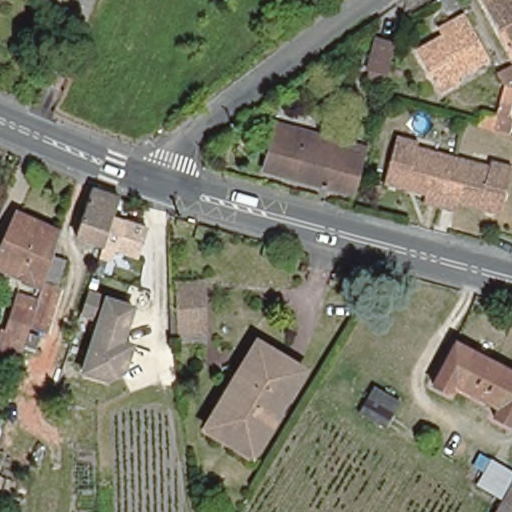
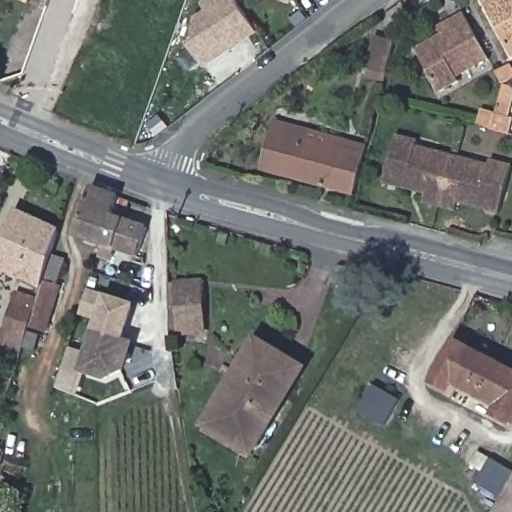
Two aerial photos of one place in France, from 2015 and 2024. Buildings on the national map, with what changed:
unchanged [(28,0),(58,0),(54,10),(28,0)]
new [(189,35),(193,18),(202,11),(198,5),(204,0),(233,0),(254,31),(199,66),(184,44),(191,38),(189,35)]
new [(277,0),(298,0),(285,3),(277,0)]
unchanged [(482,0),(512,0),(512,55),(510,56),(482,0)]
unchanged [(460,81),(439,92),(416,49),(443,34),(438,26),(465,12),(490,59),(478,64),(473,67),(457,76),(460,81)]
unchanged [(392,62),(388,76),(370,71),(378,44),(396,48),(392,62)]
unchanged [(512,80),(503,84),(496,70),(512,65),(512,80)]
unchanged [(478,125),(482,110),(495,113),(500,98),(510,100),(505,115),(511,117),(507,132),(491,129),(478,125)]
unchanged [(295,177),(264,169),(276,121),(306,129),(295,177)]
unchanged [(368,145),(355,194),(295,177),(306,129),(368,145)]
unchanged [(384,182),(397,135),(419,140),(417,146),(434,150),(452,155),(448,172),(448,173),(438,205),(421,201),(423,192),(406,188),(384,182)]
unchanged [(438,205),(448,173),(448,172),(452,155),(471,160),(490,165),(491,160),(512,165),(512,169),(500,213),(478,207),(458,201),(456,210),(438,205)]
unchanged [(117,217),(108,245),(80,236),(96,189),(114,195),(124,198),(117,217)]
unchanged [(6,331),(10,331),(19,305),(39,311),(46,286),(0,267),(0,258),(20,213),(64,232),(47,284),(63,289),(50,327),(41,325),(40,329),(34,327),(32,332),(42,336),(36,351),(26,348),(24,357),(22,363),(0,356),(0,350),(6,331)]
unchanged [(150,229),(141,256),(108,245),(117,217),(150,229)]
unchanged [(200,282),(203,333),(177,333),(174,283),(200,282)]
unchanged [(124,341),(135,345),(126,368),(111,378),(87,370),(105,317),(86,311),(92,291),(136,307),(124,341)]
unchanged [(301,368),(249,454),(203,425),(255,339),(301,368)]
unchanged [(512,418),(508,425),(491,416),(495,407),(453,385),(448,393),(431,383),(453,342),(512,374),(512,418)]
unchanged [(403,400),(387,426),(361,412),(376,386),(403,400)]
unchanged [(512,512),(492,512),(496,505),(499,500),(473,485),(489,458),(512,471),(512,512)]

